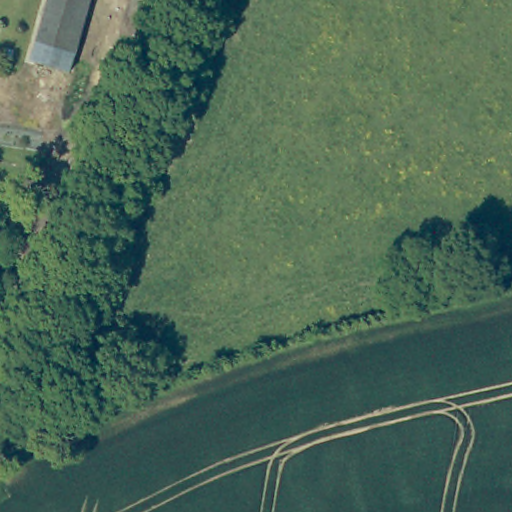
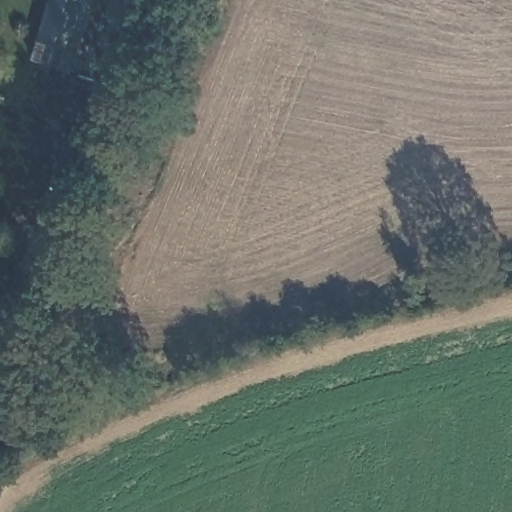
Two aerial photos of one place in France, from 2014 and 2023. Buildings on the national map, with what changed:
unchanged [(84,76),(26,60),(42,0),(106,0),(84,76)]

